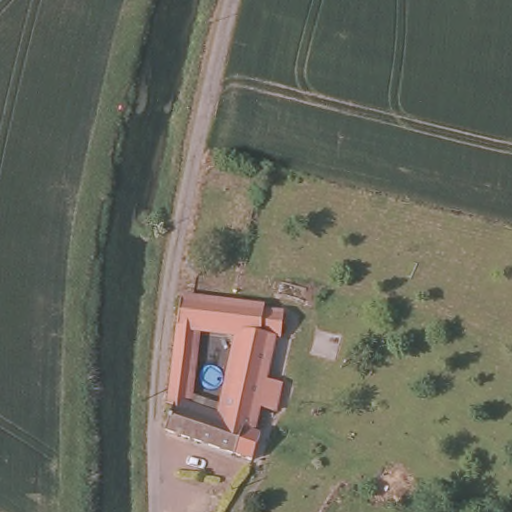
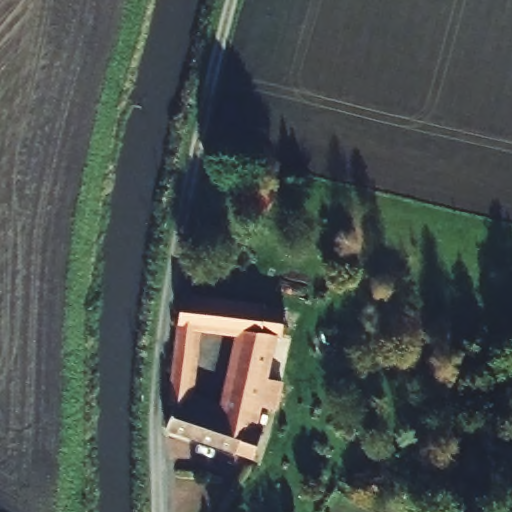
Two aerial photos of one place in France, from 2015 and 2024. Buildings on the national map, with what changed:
unchanged [(284,317),(280,341),(275,341),(265,385),(283,387),(279,415),(260,412),(255,435),(264,438),(253,465),(165,432),(182,303),(233,310),(263,313),(284,317)]

